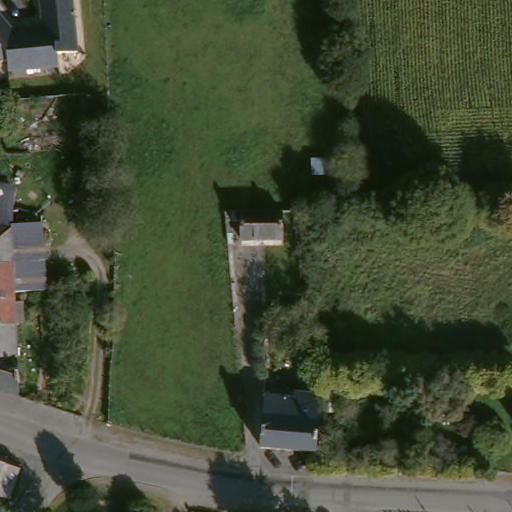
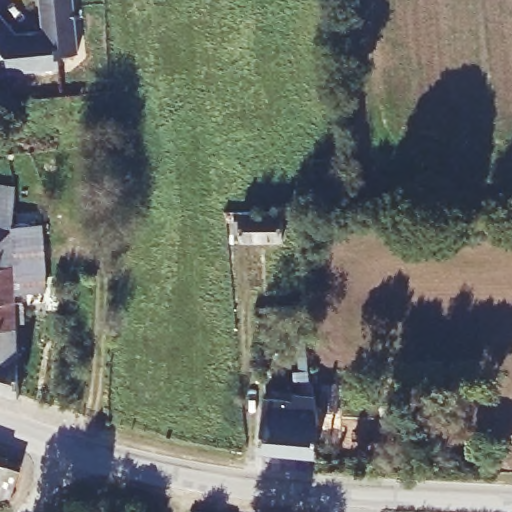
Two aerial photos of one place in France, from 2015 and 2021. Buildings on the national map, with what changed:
unchanged [(82,44),(60,48),(62,63),(14,66),(11,58),(1,51),(0,53),(0,14),(2,12),(21,31),(46,28),(45,0),(79,0),(82,44)]
unchanged [(12,225),(0,224),(0,186),(10,186),(12,222),(12,225)]
unchanged [(296,234),(257,234),(255,206),(275,205),(294,204),(296,234)]
unchanged [(12,225),(12,222),(40,222),(43,259),(45,287),(15,289),(21,392),(0,385),(0,224),(12,225)]
unchanged [(327,454),(273,448),(276,400),(279,401),(279,396),(284,396),(284,394),(300,395),(299,402),(307,403),(307,398),(314,398),(314,384),(323,385),(326,399),(330,425),(327,454)]
unchanged [(0,490),(0,456),(25,465),(23,469),(25,466),(27,466),(26,468),(24,476),(17,497),(13,495),(8,493),(0,490)]

